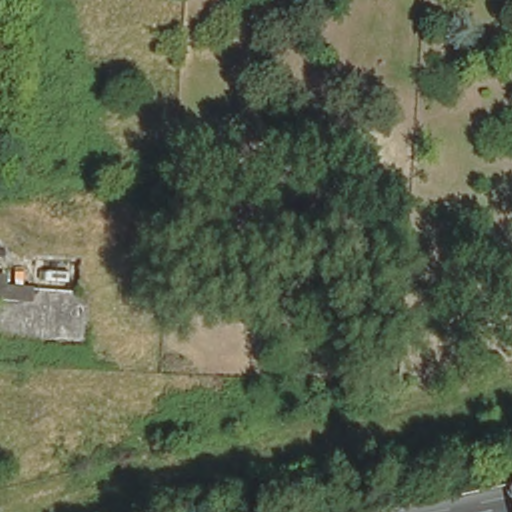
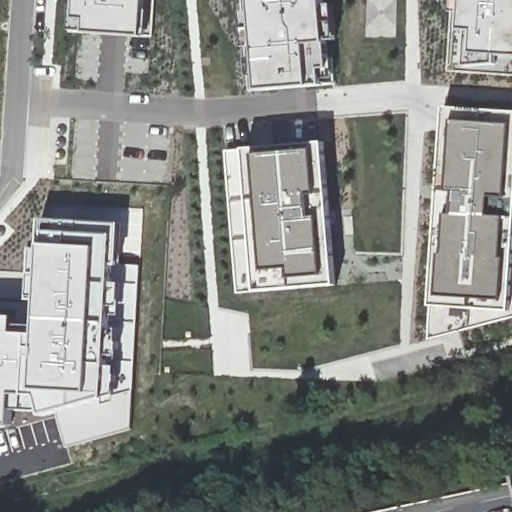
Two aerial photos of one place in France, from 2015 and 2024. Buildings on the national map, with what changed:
new [(82,33),(81,23),(71,22),(73,0),(152,0),(150,36),(82,33)]
new [(253,92),(246,0),(317,0),(328,86),(253,92)]
new [(469,63),(473,25),(460,25),(461,0),(512,0),(512,64),(469,63)]
new [(512,115),(512,317),(428,343),(443,110),(512,115)]
new [(333,290),(239,294),(227,153),(322,148),(333,290)]
new [(14,408),(14,424),(0,428),(0,315),(16,316),(15,324),(40,324),(41,296),(30,295),(31,271),(42,272),(43,245),(39,246),(40,218),(120,224),(119,263),(115,263),(114,283),(122,284),(120,304),(119,313),(113,314),(113,328),(119,329),(118,354),(111,354),(110,367),(118,368),(116,392),(105,395),(45,416),(43,410),(14,408)]

